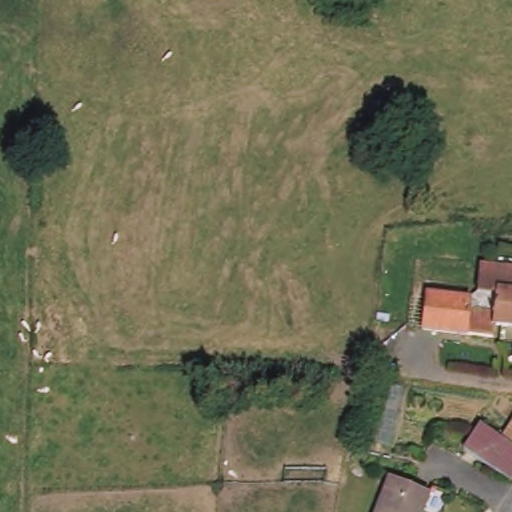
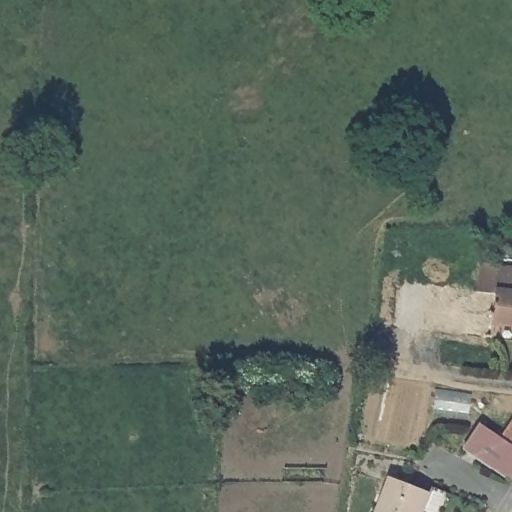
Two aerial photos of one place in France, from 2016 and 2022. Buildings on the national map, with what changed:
unchanged [(493,324),(496,293),(491,293),(495,265),(512,266),(512,326),(501,324),(495,324),(493,324)]
unchanged [(427,293),(470,298),(477,292),(491,293),(496,293),(493,324),(495,324),(493,337),(423,329),(427,293)]
unchanged [(476,424),(497,439),(512,415),(512,470),(505,480),(459,449),(476,424)]
unchanged [(389,477),(430,492),(422,512),(375,512),(389,477)]

